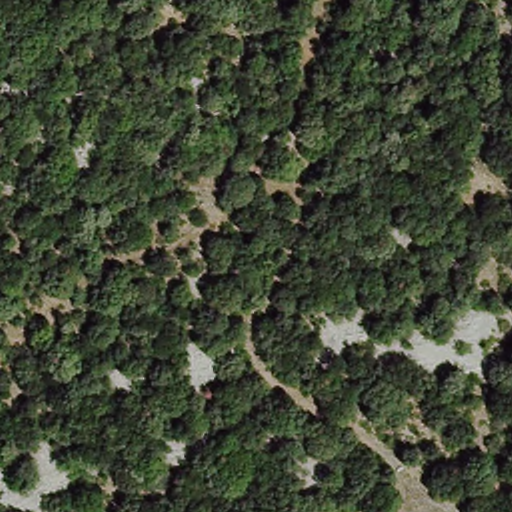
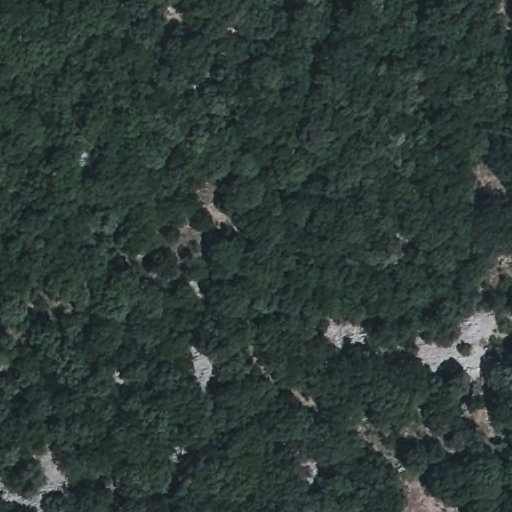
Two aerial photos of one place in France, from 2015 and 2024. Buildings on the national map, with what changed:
[]

